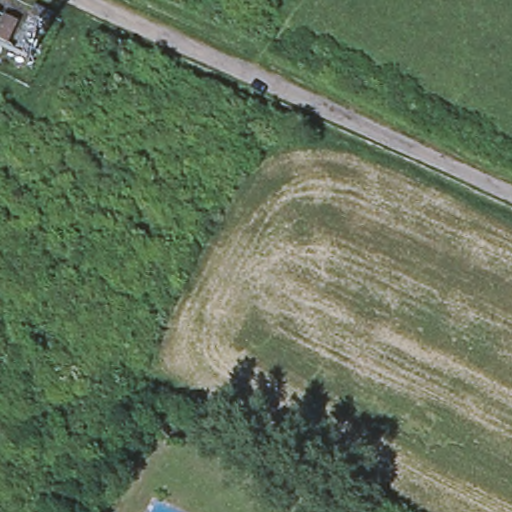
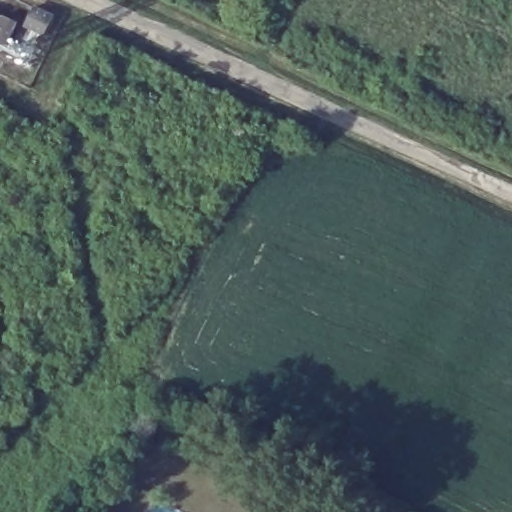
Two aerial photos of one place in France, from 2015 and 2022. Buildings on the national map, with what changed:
unchanged [(51,18),(44,31),(27,23),(34,9),(51,18)]

